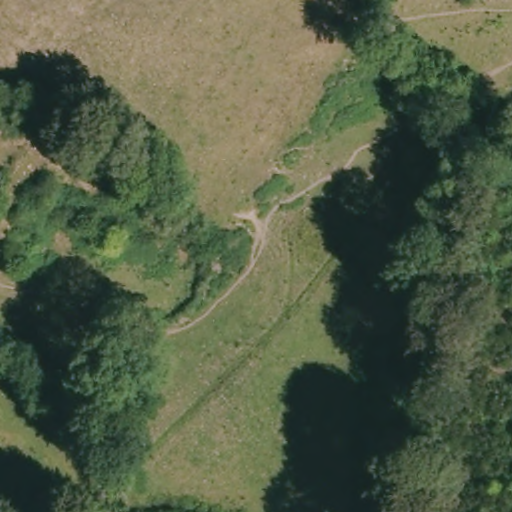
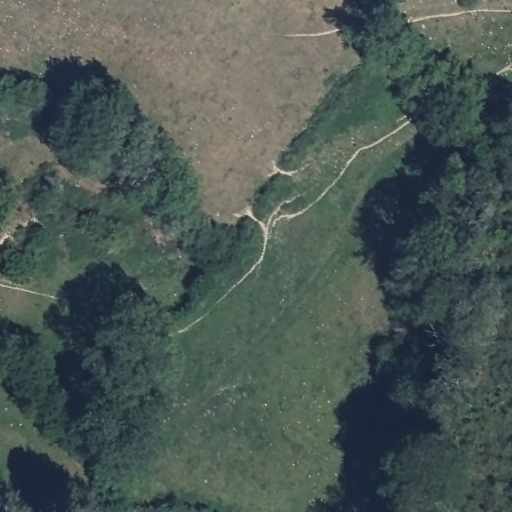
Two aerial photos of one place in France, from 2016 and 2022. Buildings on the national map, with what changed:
unchanged [(110,229),(110,249),(91,248),(93,228),(110,229)]

